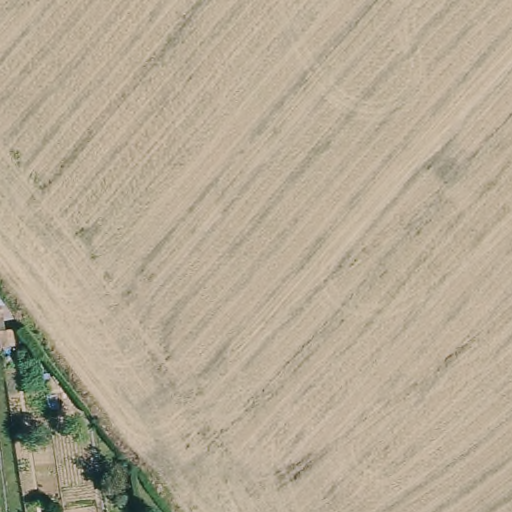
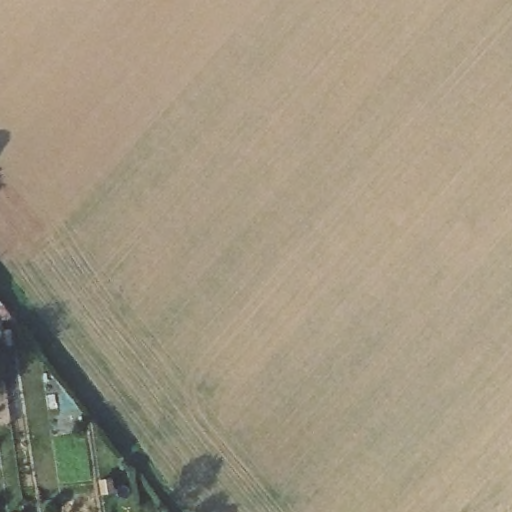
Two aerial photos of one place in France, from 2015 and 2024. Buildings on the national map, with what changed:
unchanged [(13,316),(1,317),(4,333),(1,334),(0,334),(0,300),(13,316)]

